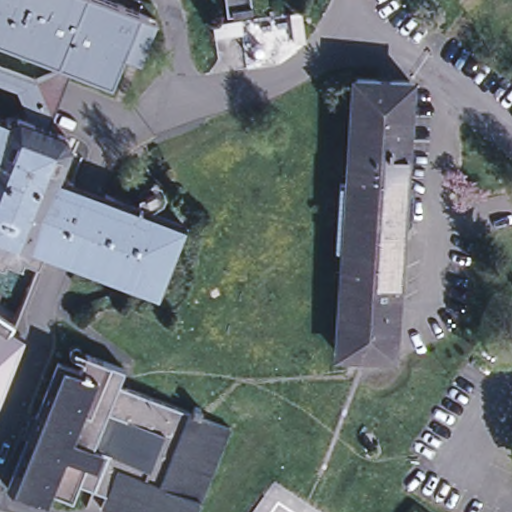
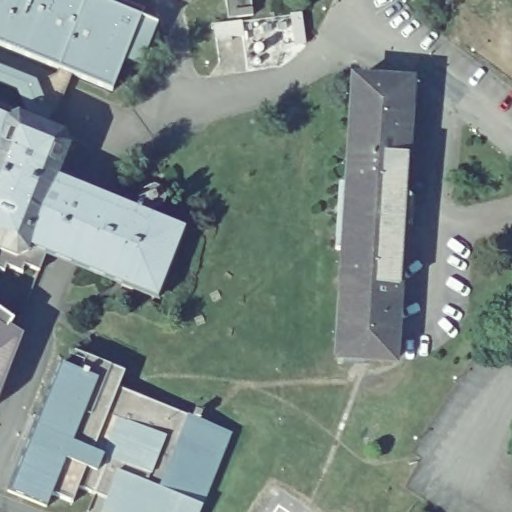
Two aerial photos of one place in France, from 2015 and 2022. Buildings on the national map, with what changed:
unchanged [(137,60),(120,52),(107,85),(66,69),(62,79),(53,83),(35,126),(18,120),(22,111),(12,85),(0,80),(0,66),(30,78),(50,70),(0,50),(0,0),(109,0),(137,11),(155,17),(137,60)]
unchanged [(252,15),(227,17),(224,0),(250,0),(252,15)]
unchanged [(301,14),(305,42),(294,44),(290,15),(301,14)]
unchanged [(241,21),(242,35),(215,39),(212,25),(241,21)]
unchanged [(207,30),(210,57),(197,58),(194,31),(207,30)]
unchanged [(349,184),(355,79),(411,82),(395,358),(339,355),(345,250),(337,250),(342,184),(349,184)]
unchanged [(14,262),(1,256),(0,258),(0,113),(18,120),(35,126),(64,137),(50,172),(66,178),(40,245),(24,240),(14,262)]
unchanged [(112,196),(86,265),(40,245),(66,178),(112,196)]
unchanged [(189,226),(161,295),(86,265),(112,196),(189,226)]
unchanged [(12,332),(22,339),(0,394),(0,315),(14,325),(12,332)]
unchanged [(120,512),(107,507),(112,494),(82,483),(77,499),(56,491),(52,502),(12,487),(44,403),(47,397),(60,360),(81,368),(87,352),(125,365),(119,382),(131,387),(235,425),(202,512),(120,512)]

